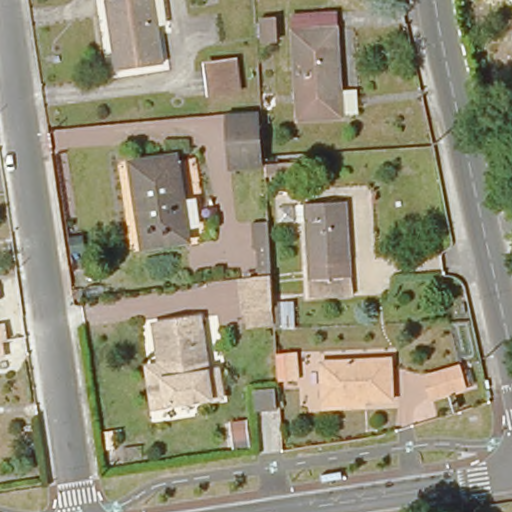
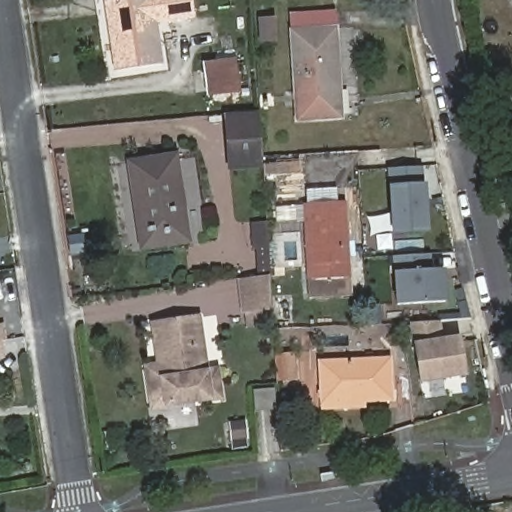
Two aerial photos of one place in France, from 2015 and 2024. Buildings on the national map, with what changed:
unchanged [(107,0),(150,0),(160,66),(114,72),(104,1),(107,0)]
unchanged [(318,120),(294,121),(287,31),(300,31),(299,14),(330,13),(335,90),(337,119),(318,120)]
unchanged [(264,18),(276,16),(279,43),(268,44),(264,18)]
unchanged [(244,58),(247,96),(207,101),(203,63),(244,58)]
unchanged [(256,111),(259,166),(225,169),(221,114),(256,111)]
unchanged [(128,163),(174,156),(186,241),(141,248),(128,163)]
unchanged [(272,163),(288,161),(289,173),(274,173),(272,163)]
new [(422,168),(425,215),(427,214),(428,231),(394,233),(391,169),(422,168)]
unchanged [(308,299),(307,280),(303,205),(344,202),(349,277),(350,295),(308,299)]
unchanged [(266,269),(253,270),(252,250),(249,250),(247,221),(263,220),(266,269)]
new [(433,270),(448,270),(450,304),(398,307),(396,272),(394,255),(432,254),(433,270)]
unchanged [(269,275),(272,323),(244,328),(237,280),(269,275)]
unchanged [(198,315),(204,370),(216,369),(220,397),(146,407),(141,366),(154,364),(149,321),(198,315)]
new [(443,338),(463,336),(469,376),(422,383),(416,342),(412,322),(443,321),(443,338)]
unchanged [(4,341),(6,358),(0,359),(0,324),(6,323),(9,341),(4,341)]
unchanged [(319,359),(389,355),(392,395),(359,397),(359,402),(339,403),(339,401),(322,402),(319,359)]
unchanged [(301,392),(279,389),(276,357),(301,358),(301,392)]
demolished [(454,365),(461,389),(428,399),(421,376),(454,365)]
unchanged [(253,392),(272,390),(274,409),(254,410),(253,392)]
unchanged [(244,420),(247,446),(230,448),(227,422),(244,420)]

